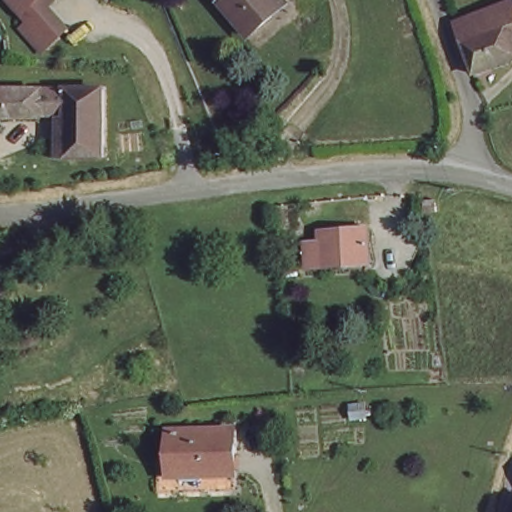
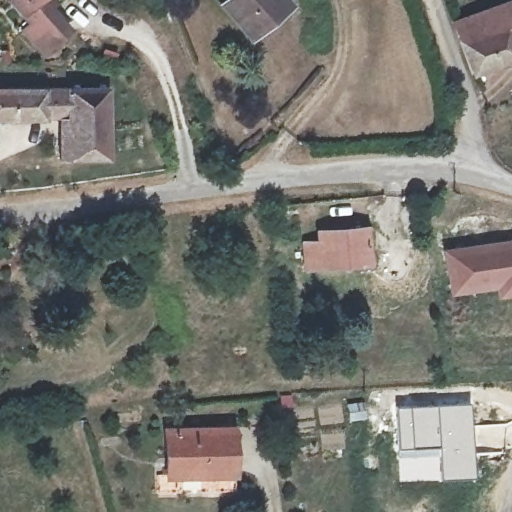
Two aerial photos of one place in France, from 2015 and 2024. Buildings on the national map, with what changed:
unchanged [(61,27),(38,46),(18,21),(25,15),(13,0),(46,0),(41,3),(61,27)]
unchanged [(224,5),(230,0),(287,0),(289,2),(251,34),(224,5)]
unchanged [(470,72),(453,23),(453,22),(512,1),(512,58),(470,72)]
unchanged [(73,156),(70,116),(0,119),(0,94),(103,87),(110,156),(73,156)]
unchanged [(437,219),(426,220),(424,208),(436,208),(437,219)]
unchanged [(371,266),(316,266),(316,242),(330,240),(330,231),(370,231),(371,266)]
new [(498,299),(496,289),(450,295),(441,247),(512,239),(512,297),(498,299)]
new [(471,403),(475,478),(439,480),(437,446),(397,449),(395,407),(471,403)]
unchanged [(238,475),(172,479),(169,436),(235,433),(238,475)]
new [(437,446),(439,480),(399,482),(397,449),(437,446)]

